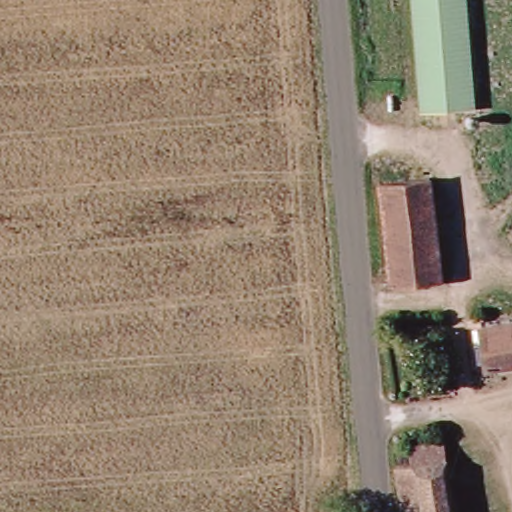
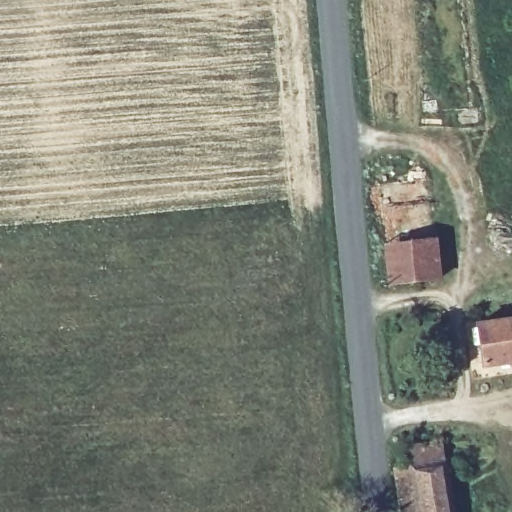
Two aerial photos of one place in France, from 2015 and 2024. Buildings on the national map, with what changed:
demolished [(432,110),(424,8),(424,0),(469,0),(476,108),(432,110)]
unchanged [(434,180),(446,275),(396,282),(384,186),(434,180)]
unchanged [(494,362),(492,322),(512,319),(512,360),(494,362)]
unchanged [(425,472),(422,455),(449,450),(453,467),(460,512),(414,512),(409,473),(425,472)]

